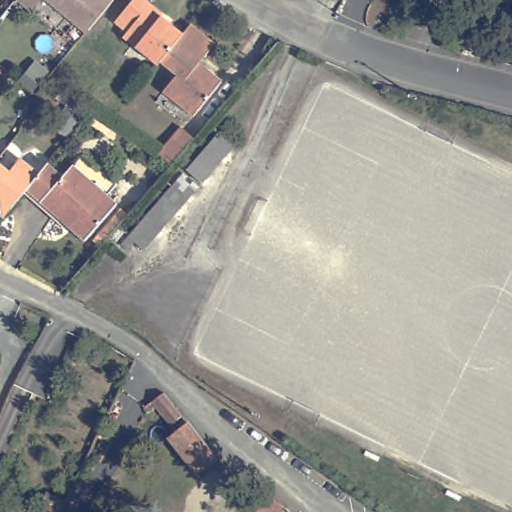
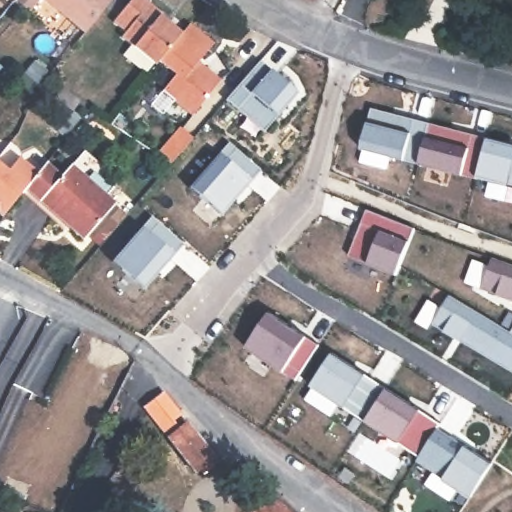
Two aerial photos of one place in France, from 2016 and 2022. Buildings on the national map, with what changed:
unchanged [(49,0),(115,0),(88,32),(82,26),(49,0)]
unchanged [(203,66),(207,71),(214,70),(228,80),(197,116),(168,92),(182,75),(178,71),(166,61),(163,65),(131,38),(135,32),(123,22),(142,0),(157,0),(172,13),(170,16),(190,32),(198,23),(208,32),(222,43),(203,66)]
new [(260,61),(298,94),(264,133),(226,100),(260,61)]
new [(512,144),(512,185),(478,176),(478,179),(362,149),(372,108),(512,144)]
unchanged [(155,156),(179,126),(193,138),(169,166),(155,156)]
demolished [(190,171),(222,134),(238,147),(206,185),(190,171)]
new [(261,170),(222,216),(190,188),(229,143),(261,170)]
unchanged [(21,160),(40,176),(29,190),(5,219),(0,214),(0,165),(10,174),(21,160)]
unchanged [(40,176),(50,164),(67,179),(76,168),(120,206),(89,240),(29,190),(40,176)]
demolished [(186,174),(203,189),(152,246),(137,232),(186,174)]
new [(415,229),(397,275),(349,256),(367,210),(415,229)]
new [(144,290),(112,262),(152,216),(184,245),(144,290)]
new [(512,264),(512,300),(481,289),(493,257),(512,264)]
new [(432,323),(449,295),(511,332),(512,331),(512,371),(432,323)]
new [(319,345),(296,380),(246,347),(269,312),(319,345)]
new [(332,352),(441,423),(438,428),(493,463),(471,496),(417,461),(419,456),(311,385),(332,352)]
unchanged [(195,431),(190,435),(194,441),(184,448),(180,443),(176,446),(149,413),(168,398),(195,431)]
unchanged [(250,512),(246,509),(259,490),(290,512),(250,512)]

